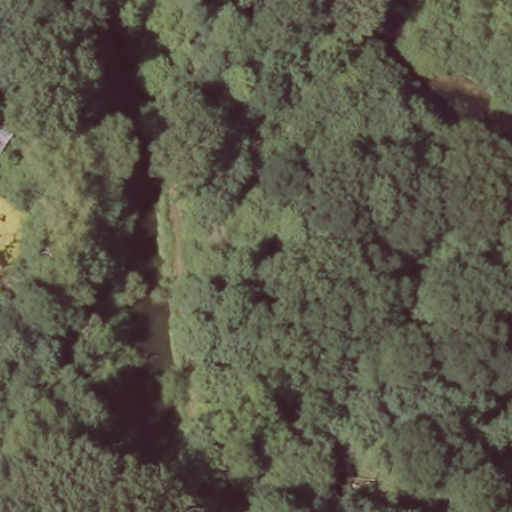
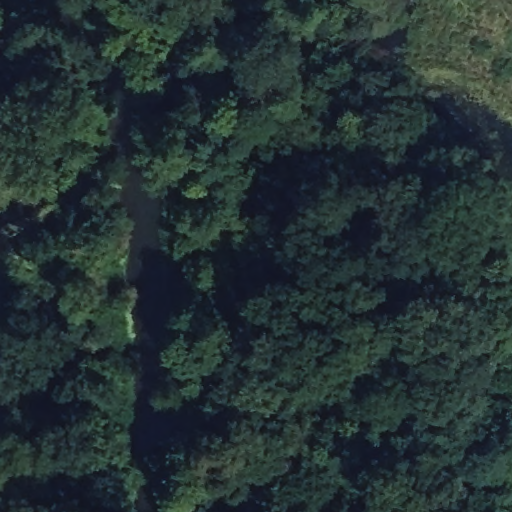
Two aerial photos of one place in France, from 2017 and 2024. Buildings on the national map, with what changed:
unchanged [(0,159),(0,120),(20,134),(0,159)]
unchanged [(1,427),(0,427),(0,398),(2,397),(1,427)]

